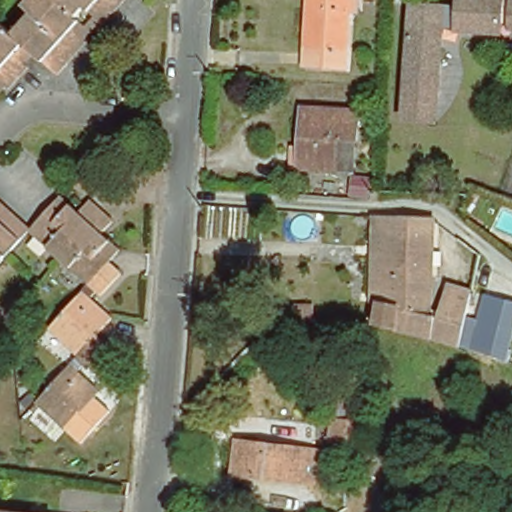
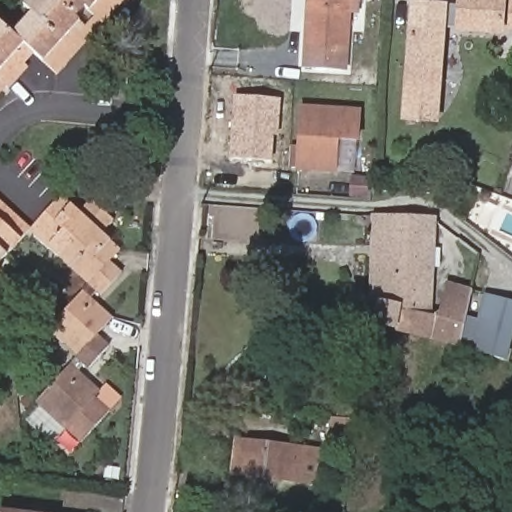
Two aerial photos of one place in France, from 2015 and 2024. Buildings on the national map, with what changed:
unchanged [(8,25),(14,30),(22,20),(30,13),(32,10),(24,2),(25,0),(120,0),(103,19),(102,18),(101,17),(84,36),(86,38),(77,48),(57,69),(38,52),(35,49),(25,60),(27,63),(28,63),(10,84),(10,83),(6,80),(0,88),(0,18),(8,25)]
unchanged [(307,0),(353,0),(353,6),(345,5),(341,63),(303,60),(307,0)]
unchanged [(397,96),(405,2),(451,5),(451,0),(493,0),(491,28),(449,25),(433,24),(427,99),(425,118),(395,115),(397,96)]
unchanged [(502,0),(512,1),(512,26),(500,25),(502,0)]
new [(272,161),(229,158),(235,95),(281,99),(279,137),(274,135),(272,161)]
unchanged [(339,169),(300,168),(303,108),(360,110),(358,141),(357,170),(339,169)]
unchanged [(30,231),(61,197),(62,198),(80,213),(90,202),(91,200),(114,221),(101,234),(120,251),(115,258),(110,263),(121,274),(101,296),(99,294),(98,294),(92,300),(112,319),(97,335),(109,347),(89,369),(85,366),(79,372),(100,392),(65,431),(35,404),(67,369),(77,358),(51,334),(49,332),(84,293),(84,292),(90,286),(70,269),(65,265),(60,259),(47,248),(29,233),(29,232),(12,250),(7,257),(6,257),(0,264),(0,204),(30,231)]
unchanged [(429,309),(441,311),(448,280),(472,286),(459,341),(395,323),(390,322),(376,319),(381,294),(373,294),(375,211),(385,212),(434,214),(429,309)]
unchanged [(499,353),(472,344),(488,292),(512,299),(512,332),(508,344),(512,345),(509,356),(508,355),(499,353)]
unchanged [(300,304),(312,304),(311,318),(298,317),(300,304)]
unchanged [(331,438),(333,418),(367,422),(365,442),(331,438)]
unchanged [(234,474),(238,440),(322,449),(318,484),(234,474)]
unchanged [(28,512),(0,512),(0,509),(28,512)]

